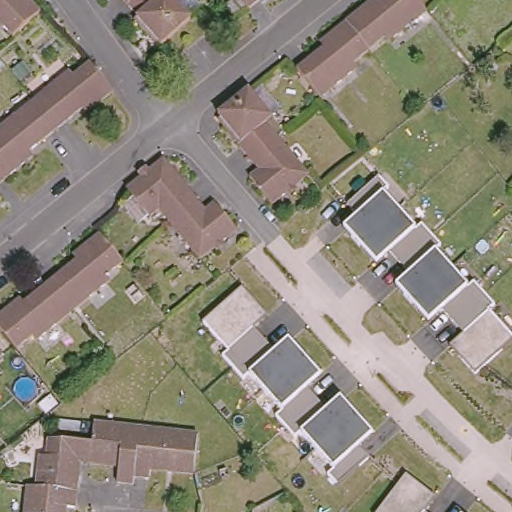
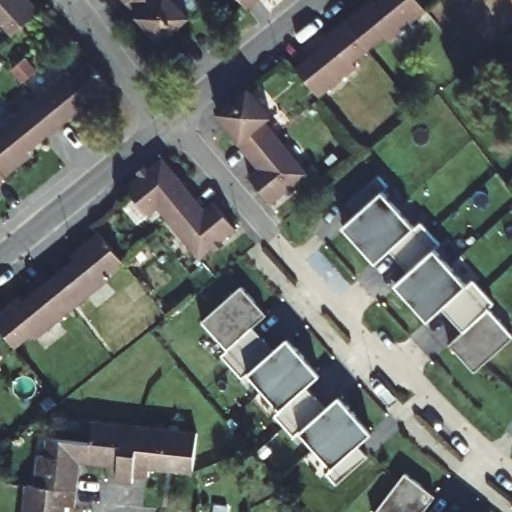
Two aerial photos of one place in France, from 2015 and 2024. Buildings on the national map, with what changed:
unchanged [(9,35),(0,25),(0,0),(28,0),(37,10),(9,35)]
unchanged [(160,45),(150,35),(147,37),(132,21),(135,18),(123,4),(119,0),(169,0),(187,20),(160,45)]
unchanged [(237,0),(258,0),(245,10),(237,0)]
unchanged [(328,30),(343,18),(361,3),(364,0),(369,0),(372,4),(376,0),(419,0),(425,6),(427,9),(387,42),(383,37),(369,49),(352,62),(356,67),(319,98),(294,68),(323,44),(318,39),(324,34),(328,30)]
unchanged [(2,135),(0,133),(0,128),(34,100),(70,69),(75,74),(90,63),(91,61),(115,89),(95,107),(90,111),(87,107),(60,130),(32,152),(35,156),(29,160),(9,177),(0,184),(0,136),(2,135)]
unchanged [(268,117),(262,123),(272,135),(304,174),(270,201),(249,175),(253,170),(244,158),(220,127),(222,125),(225,122),(217,110),(243,88),(244,88),(268,117)]
unchanged [(150,216),(127,187),(164,157),(195,196),(205,210),(214,203),(237,230),(201,259),(167,219),(159,208),(150,216)]
unchanged [(440,306),(425,321),(391,287),(410,271),(389,248),(370,264),(337,225),(352,212),(345,202),(373,178),(382,188),(470,283),(490,302),(483,309),(510,337),(475,368),(450,340),(462,329),(440,306)]
unchanged [(18,301),(45,280),(72,258),(69,253),(75,249),(95,232),(116,257),(119,260),(102,274),(105,279),(70,309),(31,340),(27,336),(12,348),(10,346),(0,333),(0,309),(8,303),(15,297),(18,301)]
unchanged [(272,348),(285,338),(316,375),(305,385),(325,407),(337,396),(370,433),(357,445),(365,456),(339,480),(330,469),(245,373),(221,347),(197,321),(237,287),(262,313),(248,325),(272,348)]
unchanged [(92,417),(137,422),(132,470),(130,478),(114,476),(115,460),(89,457),(90,437),(92,417)]
unchanged [(195,429),(190,468),(147,463),(147,472),(132,470),(137,422),(195,429)]
unchanged [(36,450),(44,451),(45,433),(90,437),(89,457),(77,456),(74,486),(33,481),(36,450)]
unchanged [(400,473),(431,496),(419,511),(421,512),(372,512),(400,473)]
unchanged [(25,480),(33,481),(74,486),(72,502),(63,501),(62,512),(21,512),(25,480)]

